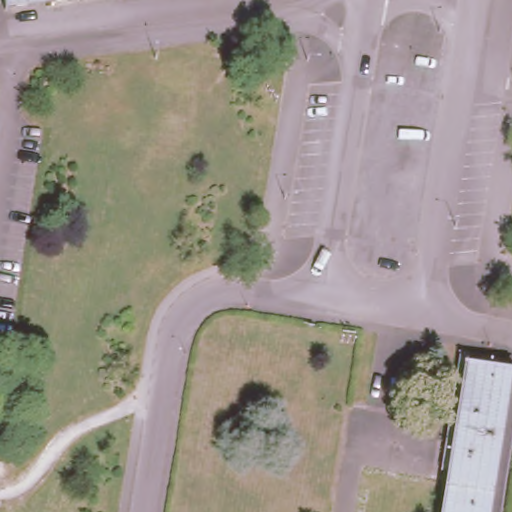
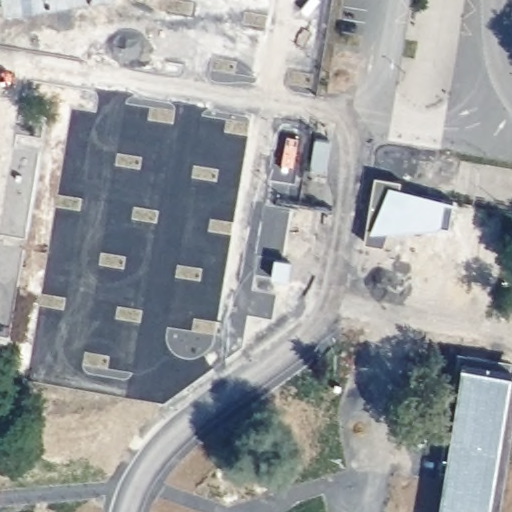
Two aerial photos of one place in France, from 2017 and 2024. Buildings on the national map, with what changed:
unchanged [(2,0),(40,0),(3,5),(2,0)]
new [(451,227),(442,225),(439,227),(391,230),(384,246),(365,242),(375,175),(402,180),(402,186),(446,198),(454,202),(451,227)]
unchanged [(458,371),(463,372),(464,364),(481,367),(479,375),(512,380),(512,387),(492,512),(435,512),(458,371)]

